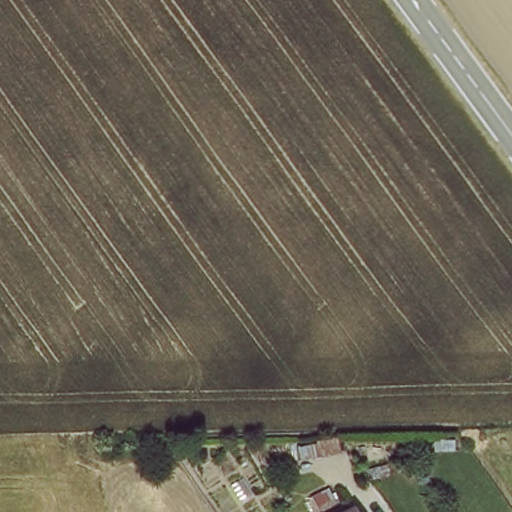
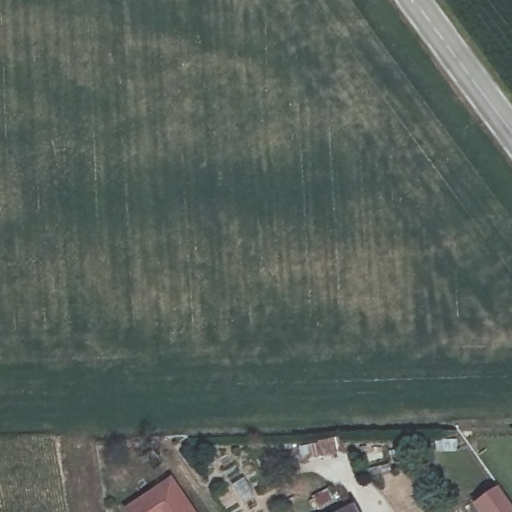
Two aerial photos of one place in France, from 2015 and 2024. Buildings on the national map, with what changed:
new [(172,476),(196,512),(124,512),(122,510),(172,476)]
new [(497,489),(512,509),(512,512),(477,512),(473,506),(497,489)]
unchanged [(356,512),(350,512),(355,510),(356,512)]

